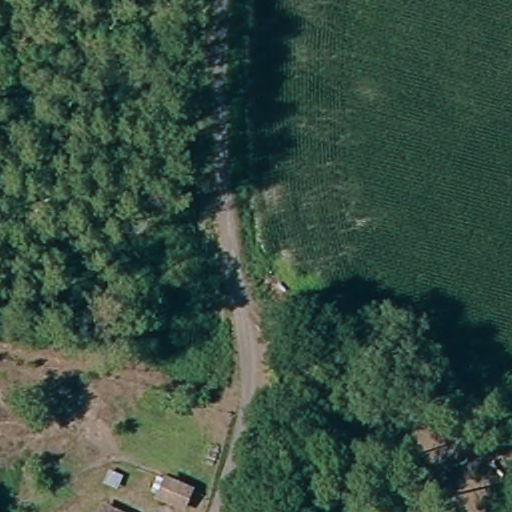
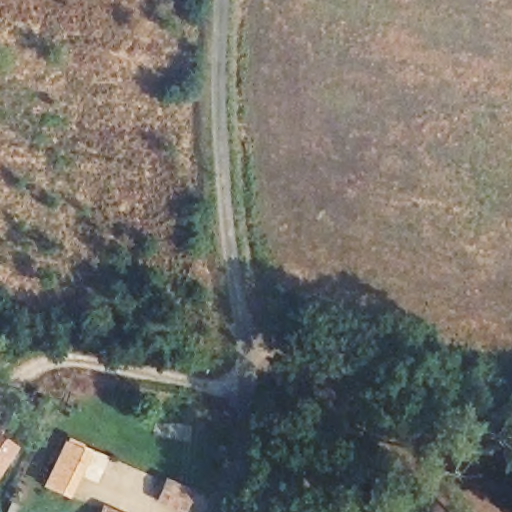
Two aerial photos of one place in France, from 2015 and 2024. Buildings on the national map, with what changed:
new [(17,447),(0,474),(0,435),(17,447)]
new [(70,497),(42,486),(62,440),(88,452),(70,497)]
unchanged [(173,486),(196,496),(190,512),(183,512),(165,505),(173,486)]

